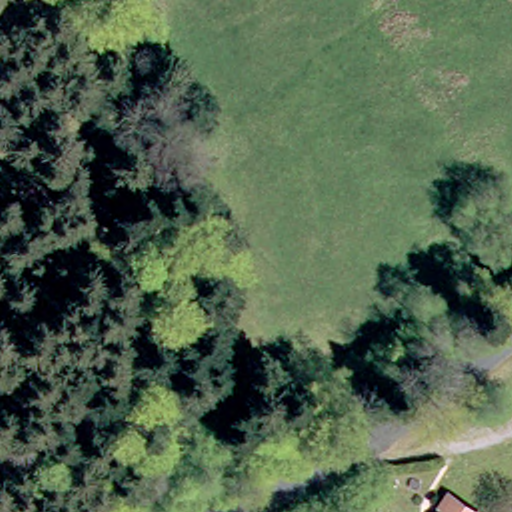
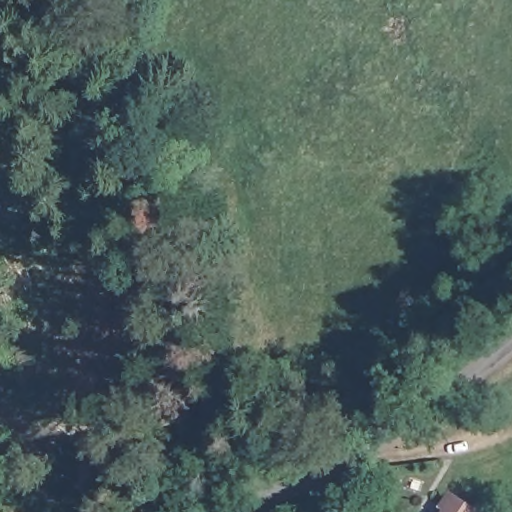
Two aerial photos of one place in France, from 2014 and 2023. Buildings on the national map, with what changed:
unchanged [(448,492),(477,510),(475,512),(433,512),(434,510),(448,492)]

